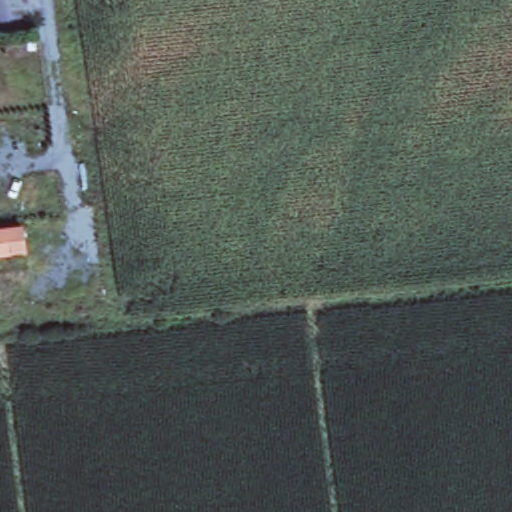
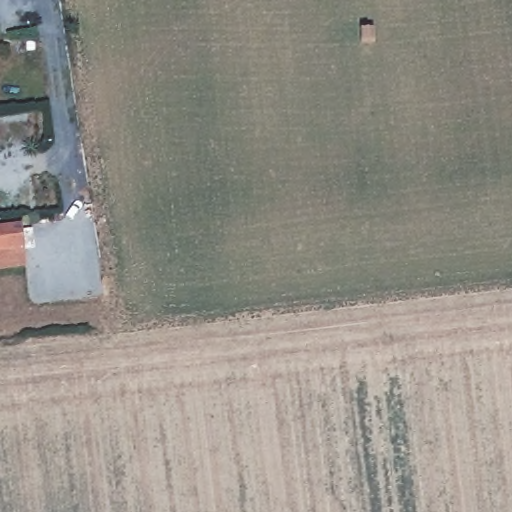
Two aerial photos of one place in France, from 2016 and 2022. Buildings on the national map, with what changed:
unchanged [(25,252),(0,256),(0,228),(22,226),(25,252)]

